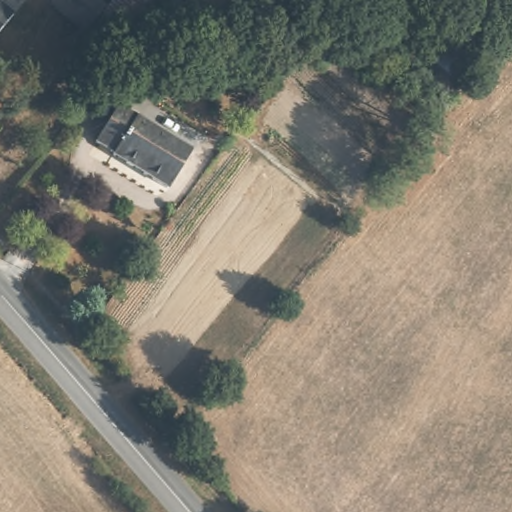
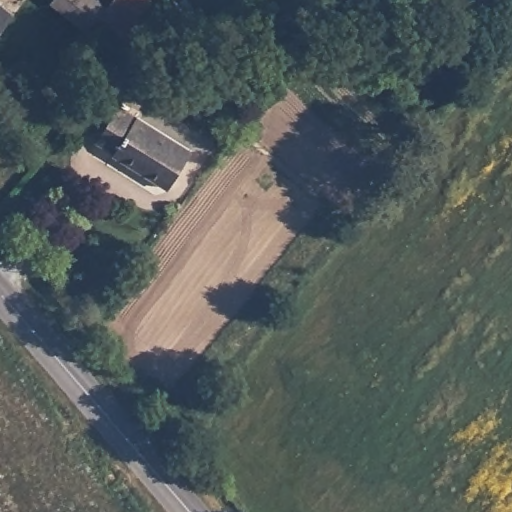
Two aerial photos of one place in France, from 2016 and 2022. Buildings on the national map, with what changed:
unchanged [(55,0),(102,0),(107,5),(99,14),(88,27),(55,0)]
unchanged [(112,0),(154,0),(124,36),(99,14),(107,5),(112,0)]
unchanged [(0,4),(12,14),(0,29),(0,4)]
unchanged [(503,29),(476,66),(461,56),(470,43),(459,35),(467,23),(475,29),(486,16),(503,29)]
unchanged [(169,186),(111,152),(113,148),(96,138),(117,103),(191,149),(169,186)]

